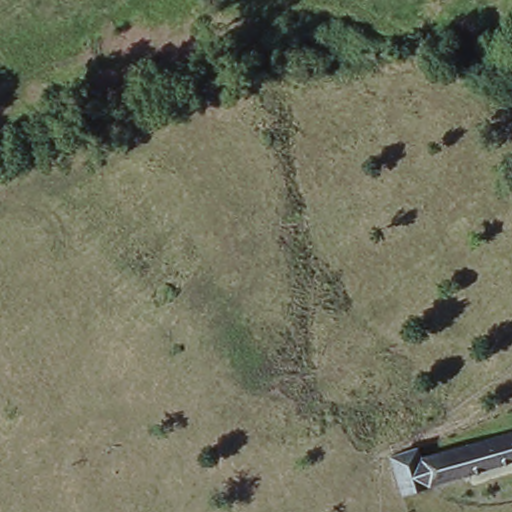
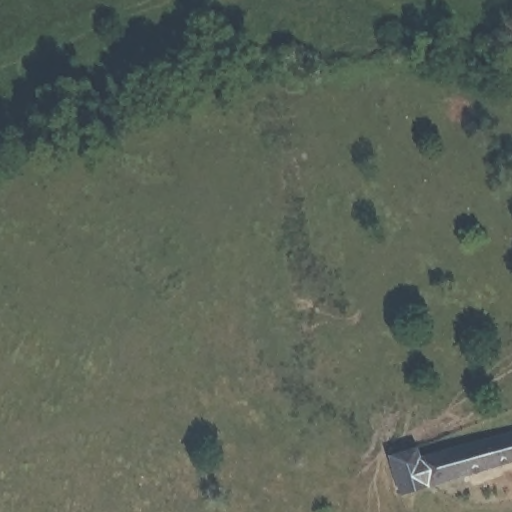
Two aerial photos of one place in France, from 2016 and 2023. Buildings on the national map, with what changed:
unchanged [(441,443),(481,432),(485,446),(512,437),(512,466),(395,501),(385,459),(441,443)]

